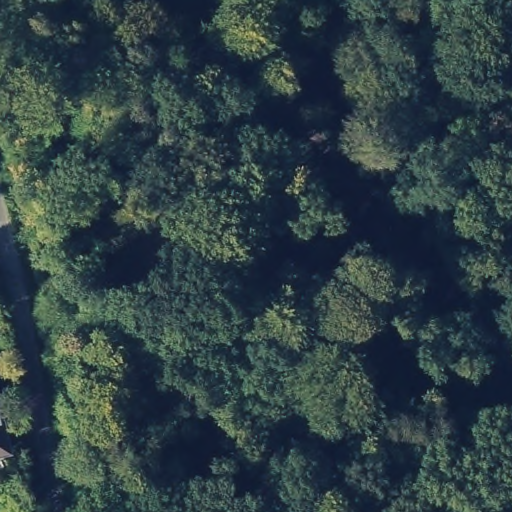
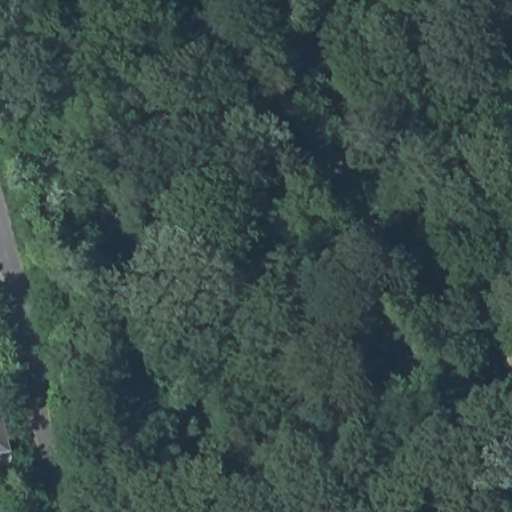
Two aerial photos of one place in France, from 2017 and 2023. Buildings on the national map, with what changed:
unchanged [(2,432),(9,438),(13,446),(12,457),(2,465),(0,464),(0,423),(2,432)]

